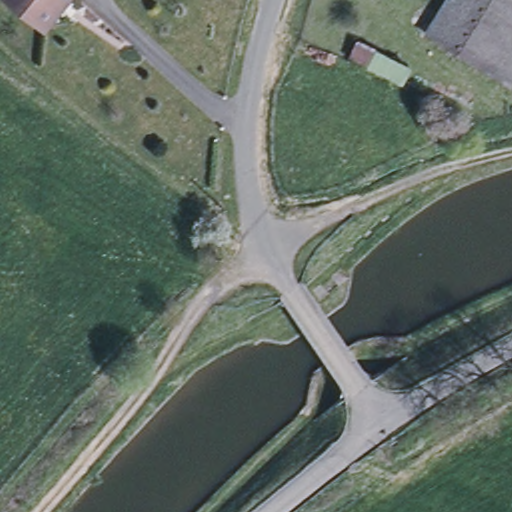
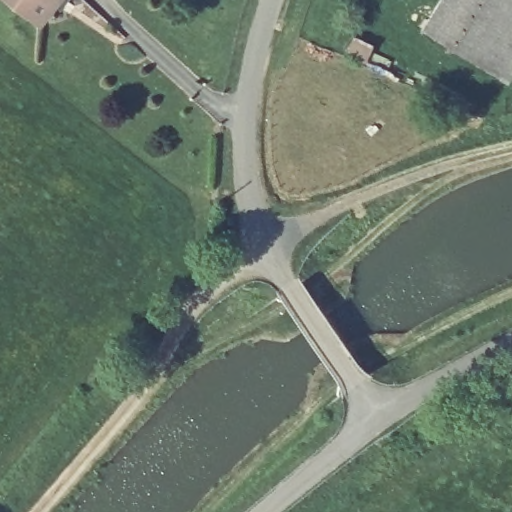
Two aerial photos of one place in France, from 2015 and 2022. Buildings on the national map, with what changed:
unchanged [(62,11),(55,5),(42,22),(15,0),(70,0),(62,11)]
unchanged [(426,32),(445,0),(512,0),(512,71),(508,77),(489,65),(486,70),(426,32)]
unchanged [(355,36),(412,62),(403,81),(347,55),(355,36)]

